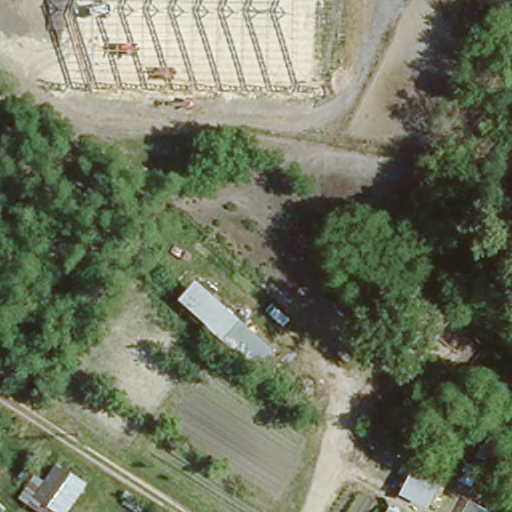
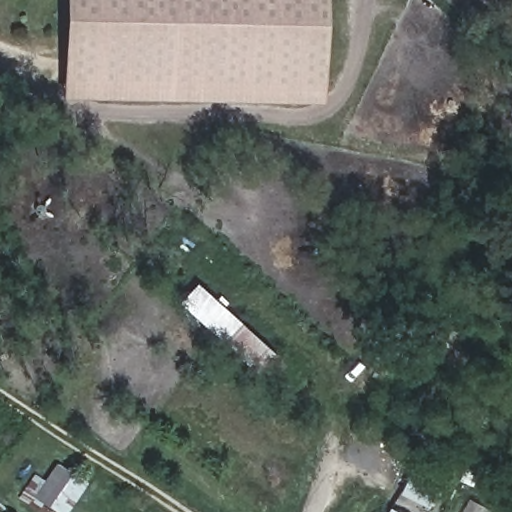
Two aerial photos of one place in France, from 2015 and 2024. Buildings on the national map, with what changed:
new [(325,0),(324,100),(62,96),(64,0),(325,0)]
new [(178,300),(195,281),(274,352),(257,371),(178,300)]
unchanged [(443,470),(421,512),(407,503),(412,494),(401,487),(420,451),(443,470)]
unchanged [(81,482),(61,512),(36,494),(56,464),(81,482)]

